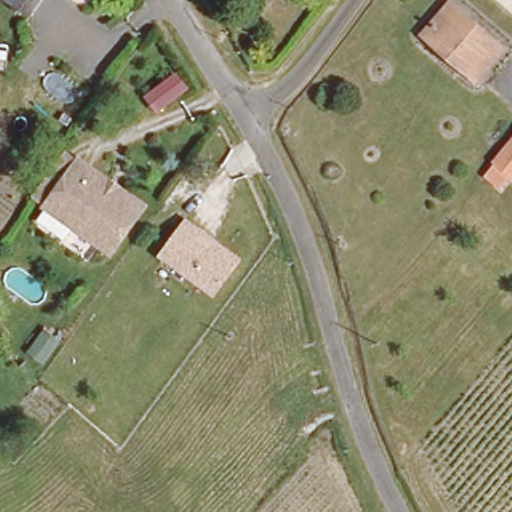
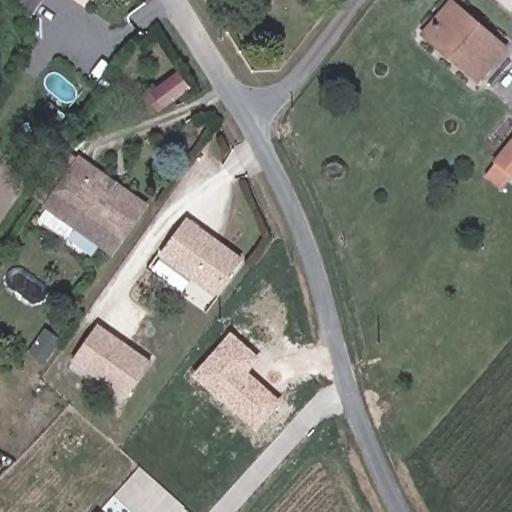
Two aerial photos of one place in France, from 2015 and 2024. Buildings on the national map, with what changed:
unchanged [(1,0),(40,0),(30,17),(1,0)]
unchanged [(71,0),(74,0),(74,2),(71,0)]
unchanged [(431,27),(448,5),(502,49),(474,84),(448,62),(420,41),(431,27)]
new [(151,115),(142,97),(179,71),(189,88),(151,115)]
unchanged [(483,173),(492,162),(512,137),(512,178),(509,176),(501,187),(483,173)]
unchanged [(95,169),(143,204),(138,212),(111,250),(47,207),(46,209),(34,201),(68,150),(80,161),(94,170),(95,169)]
unchanged [(213,297),(158,257),(187,217),(243,258),(213,297)]
new [(124,398),(72,361),(96,323),(151,362),(124,398)]
new [(282,402),(256,431),(193,376),(230,332),(260,358),(249,372),(282,402)]

